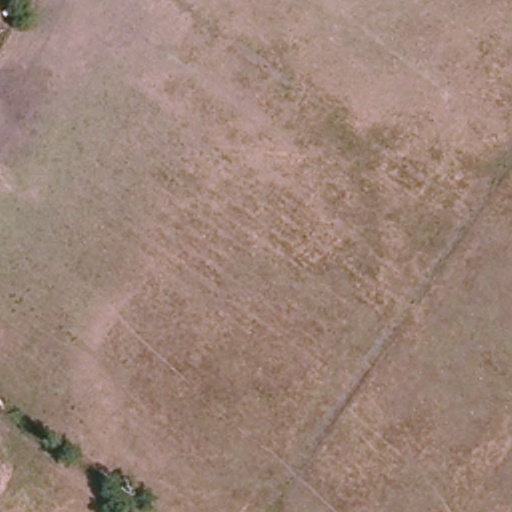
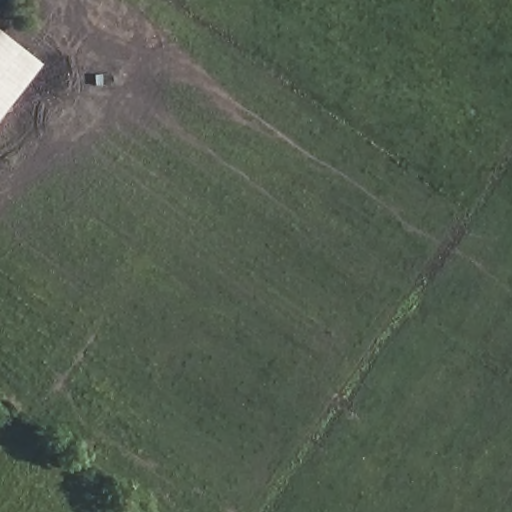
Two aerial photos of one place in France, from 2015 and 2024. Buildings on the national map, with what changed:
unchanged [(0,37),(0,27),(5,31),(0,37)]
new [(42,65),(0,118),(0,38),(3,34),(42,65)]

